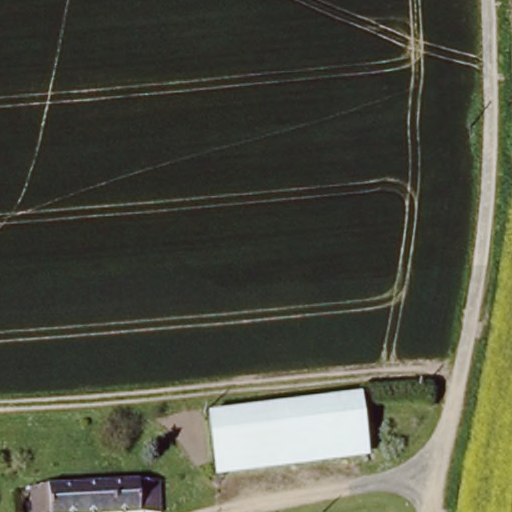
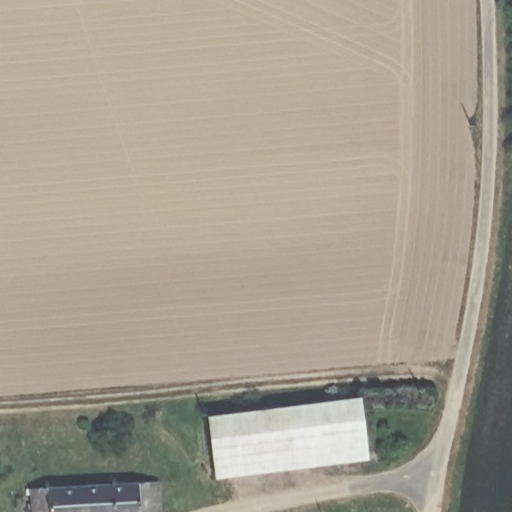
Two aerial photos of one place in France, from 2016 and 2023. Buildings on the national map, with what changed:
unchanged [(357,396),(366,455),(219,478),(209,420),(357,396)]
unchanged [(150,512),(30,512),(29,488),(156,480),(158,511),(150,512)]

